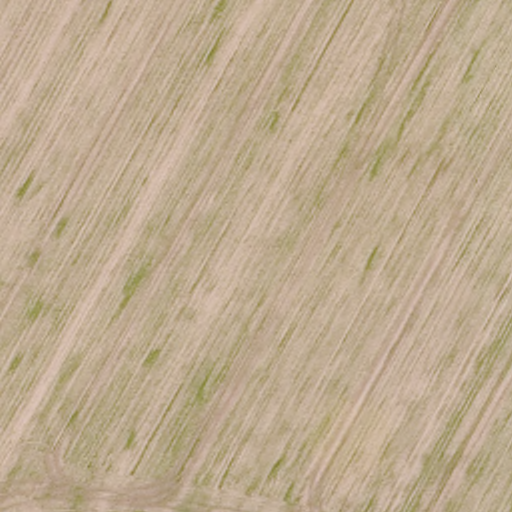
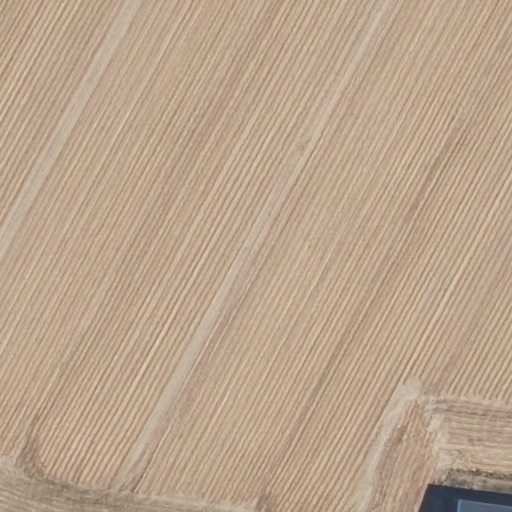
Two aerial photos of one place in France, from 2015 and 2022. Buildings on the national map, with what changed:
new [(457,500),(512,508),(512,512),(456,512),(457,500)]

